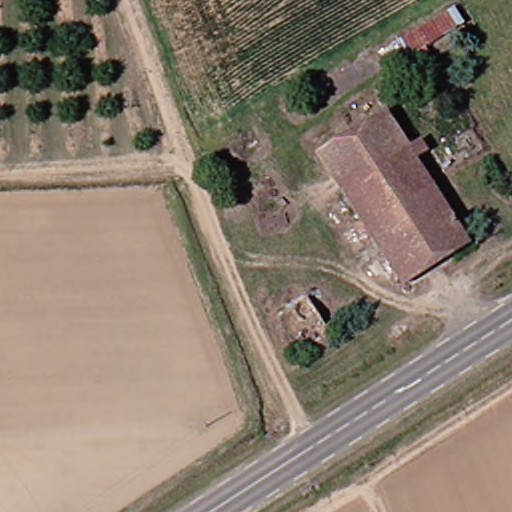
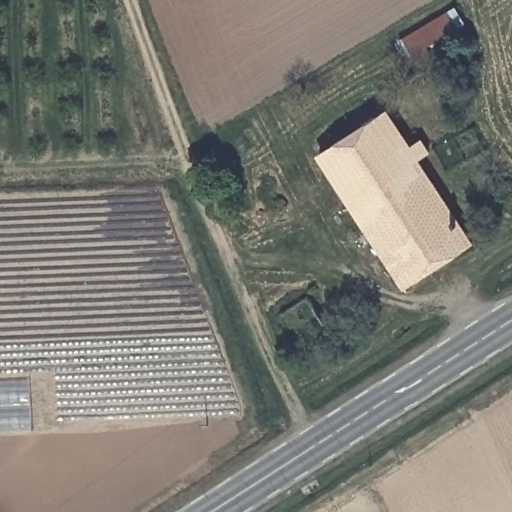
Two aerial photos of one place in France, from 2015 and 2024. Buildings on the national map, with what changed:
unchanged [(468,20),(413,54),(406,39),(459,8),(468,20)]
unchanged [(423,215),(381,241),(325,149),(390,107),(408,137),(418,132),(427,147),(417,155),(471,239),(447,254),(423,215)]
unchanged [(408,279),(381,241),(423,215),(447,254),(408,279)]
new [(31,378),(34,431),(0,433),(0,380),(31,378)]

